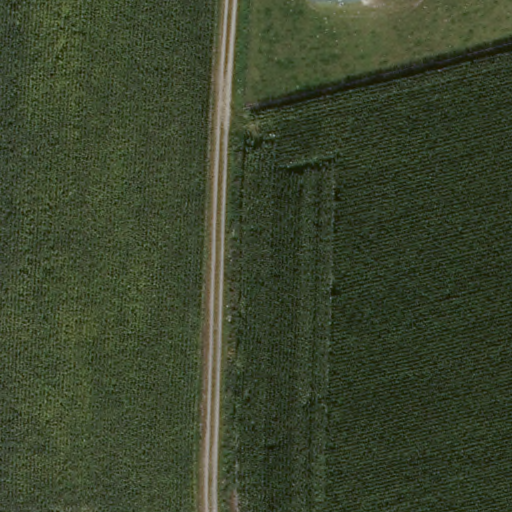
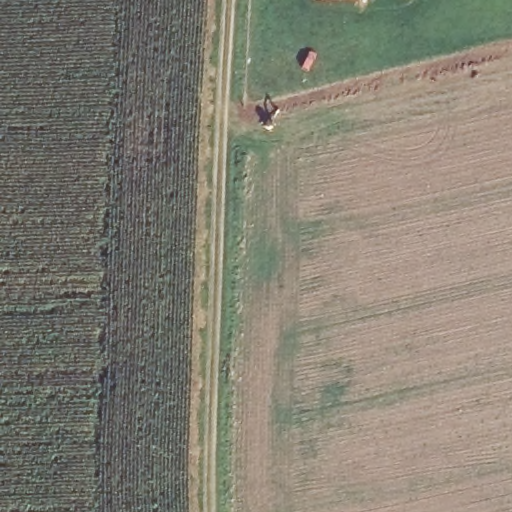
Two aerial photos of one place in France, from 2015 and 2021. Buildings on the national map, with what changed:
unchanged [(365,0),(365,1),(318,2),(317,0),(365,0)]

